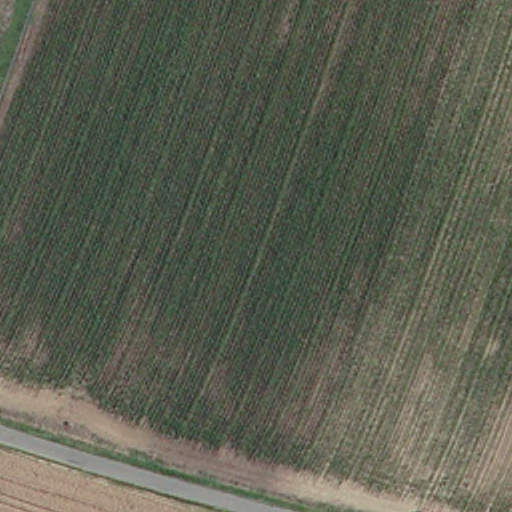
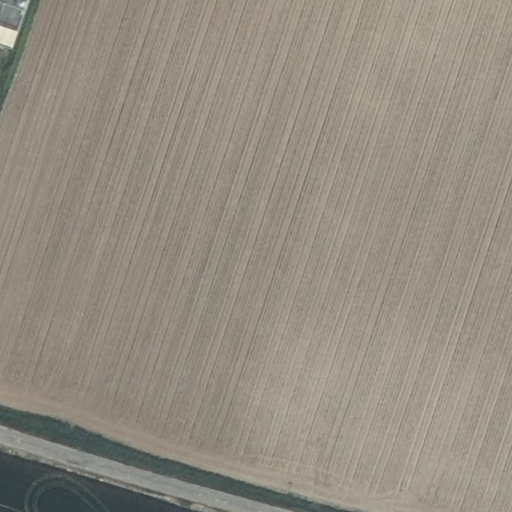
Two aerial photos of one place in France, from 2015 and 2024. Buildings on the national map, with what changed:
new [(0,46),(0,0),(30,0),(13,50),(0,46)]

